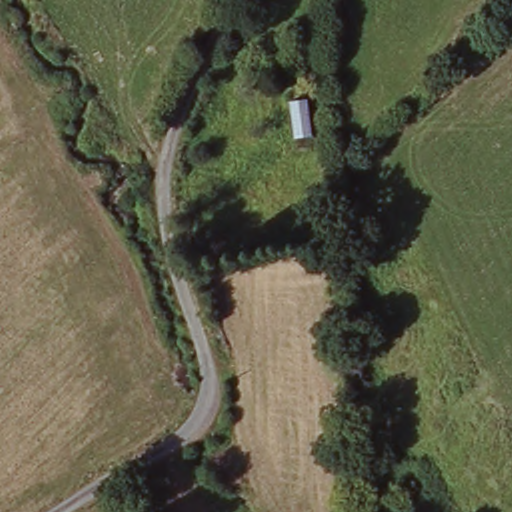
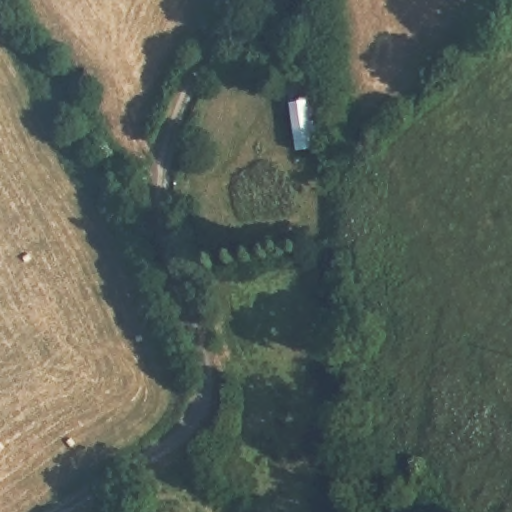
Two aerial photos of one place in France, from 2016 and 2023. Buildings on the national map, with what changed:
unchanged [(305,100),(310,138),(294,139),(290,101),(305,100)]

